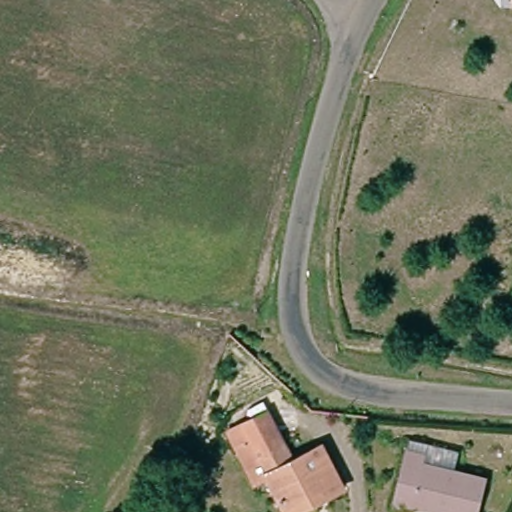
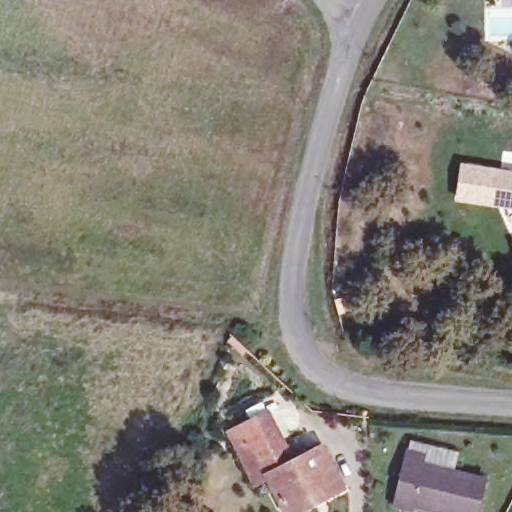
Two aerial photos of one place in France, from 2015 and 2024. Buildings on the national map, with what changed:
new [(512,171),(512,209),(455,200),(461,162),(512,171)]
unchanged [(250,482),(235,449),(227,433),(247,424),(240,406),(262,396),(271,414),(294,466),(324,452),(343,493),(322,502),(300,512),(283,512),(282,509),(266,474),(250,482)]
unchanged [(441,512),(415,504),(412,510),(392,505),(407,451),(425,456),(455,465),(452,472),(483,481),(474,512),(441,512)]

